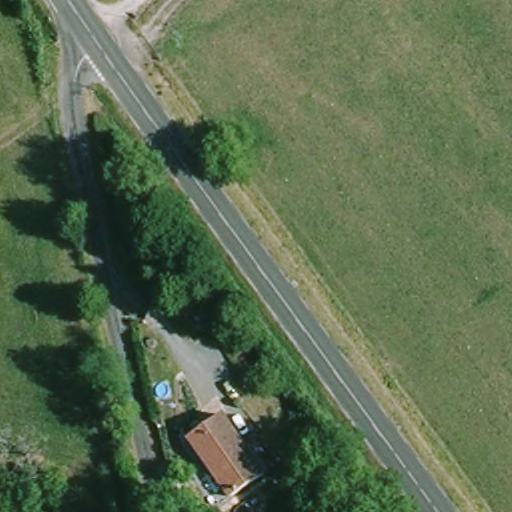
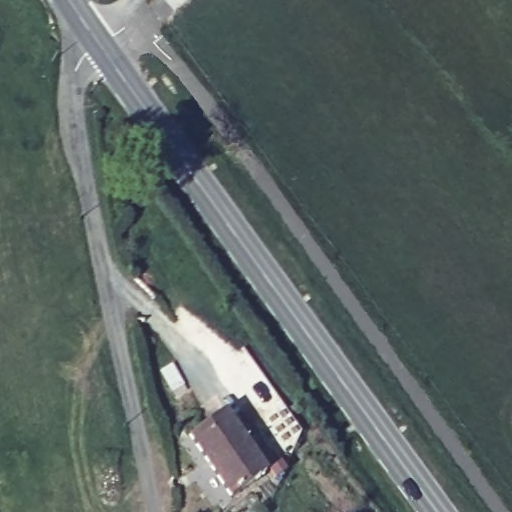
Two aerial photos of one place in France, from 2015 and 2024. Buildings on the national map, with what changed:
unchanged [(223,415),(265,473),(230,498),(189,439),(223,415)]

